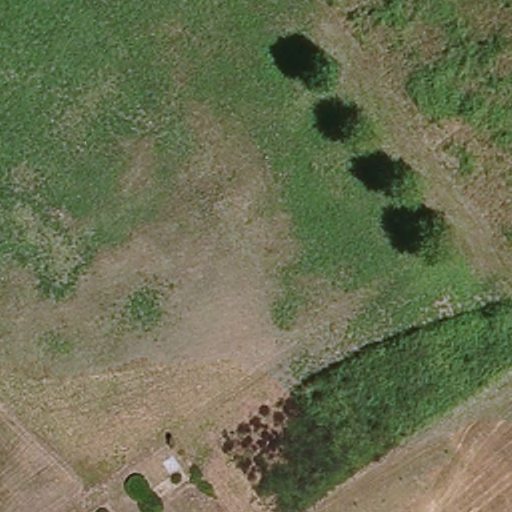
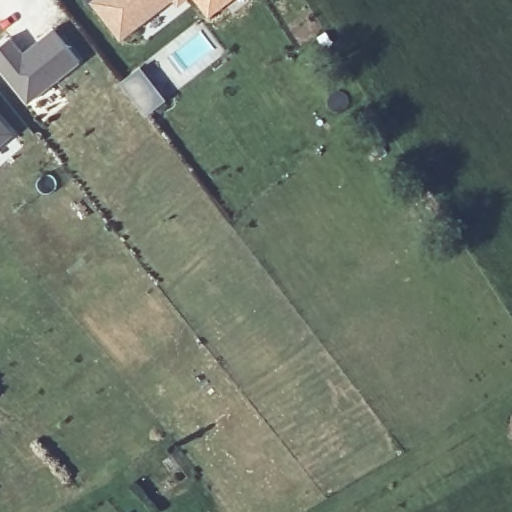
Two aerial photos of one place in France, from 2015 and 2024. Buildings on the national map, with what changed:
new [(91,3),(94,0),(171,0),(119,39),(91,3)]
new [(11,84),(0,68),(0,46),(10,38),(24,54),(31,49),(54,31),(80,64),(42,93),(27,104),(11,84)]
new [(12,134),(0,144),(0,120),(12,134)]

